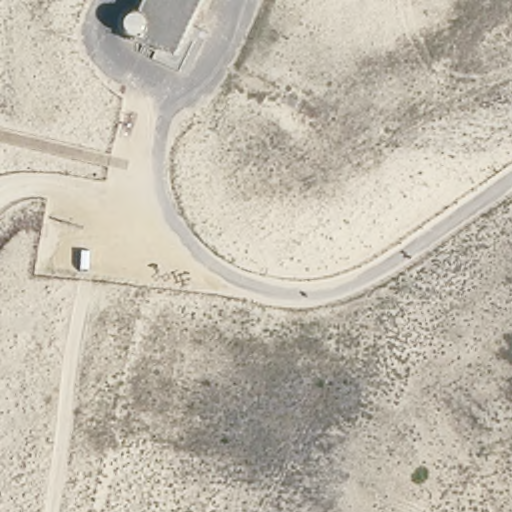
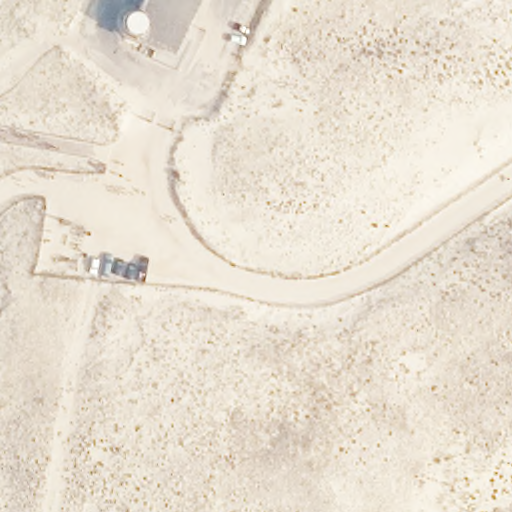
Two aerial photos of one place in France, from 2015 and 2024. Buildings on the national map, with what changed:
unchanged [(124,32),(123,19),(129,14),(136,13),(142,0),(199,0),(173,53),(135,36),(124,32)]

